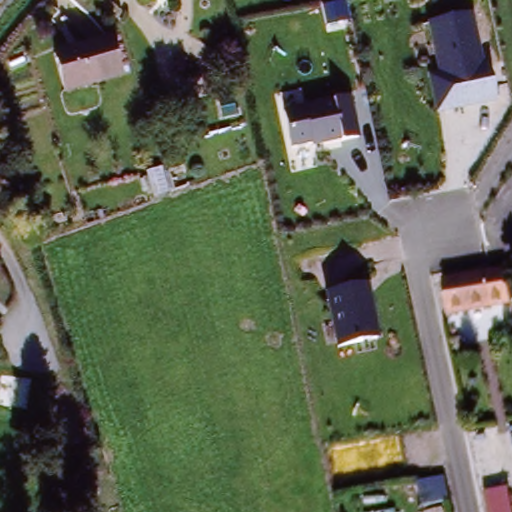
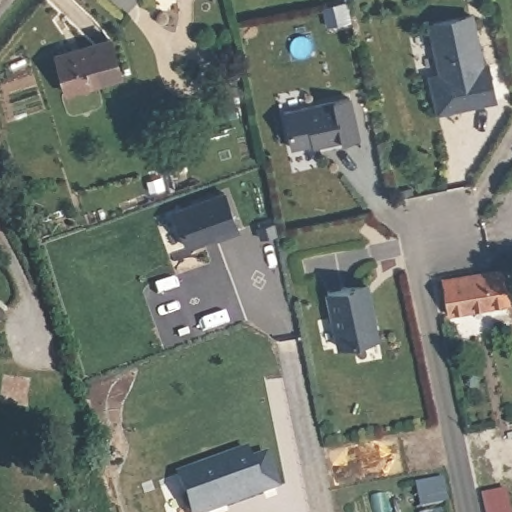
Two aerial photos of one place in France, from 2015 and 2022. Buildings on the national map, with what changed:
unchanged [(484,66),(490,64),(497,105),(436,117),(427,76),(437,74),(425,23),(472,8),(484,66)]
unchanged [(112,40),(122,75),(70,90),(60,55),(112,40)]
unchanged [(359,139),(288,150),(280,113),(351,98),(359,139)]
new [(242,232),(217,241),(217,239),(187,249),(172,211),(225,193),(242,232)]
unchanged [(504,278),(510,304),(452,316),(447,290),(504,278)]
unchanged [(380,340),(337,349),(325,294),(368,285),(380,340)]
unchanged [(0,325),(0,322),(2,324),(0,325)]
new [(199,512),(189,512),(188,509),(184,507),(181,498),(182,494),(175,472),(244,447),(247,458),(263,452),(275,484),(258,491),(215,506),(199,512)]
unchanged [(86,492),(64,499),(57,477),(80,471),(86,492)]
unchanged [(506,492),(510,512),(486,512),(483,496),(506,492)]

